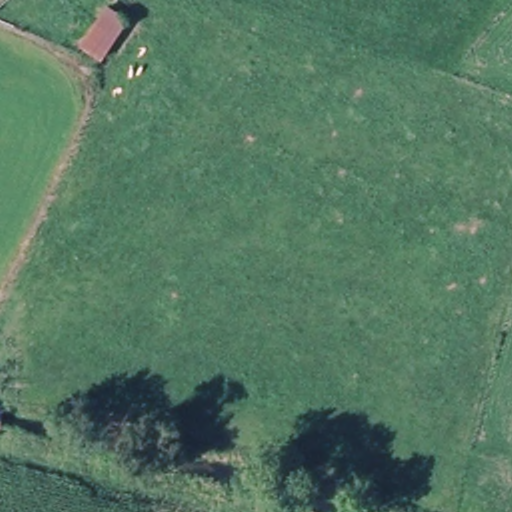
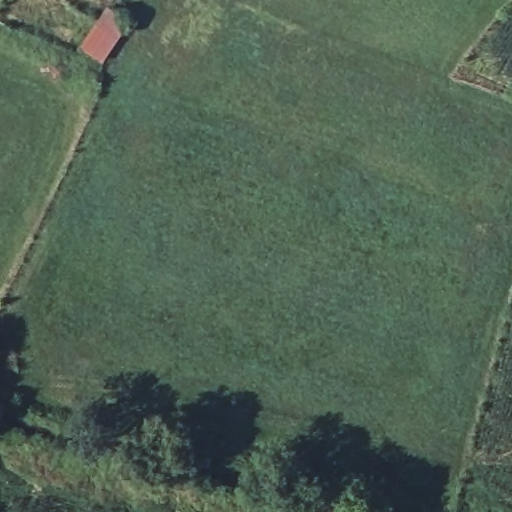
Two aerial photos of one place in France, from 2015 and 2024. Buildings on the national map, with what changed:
unchanged [(105,61),(82,48),(107,5),(132,22),(105,61)]

